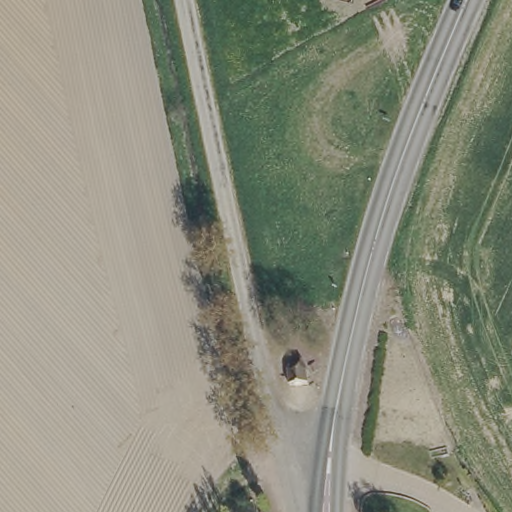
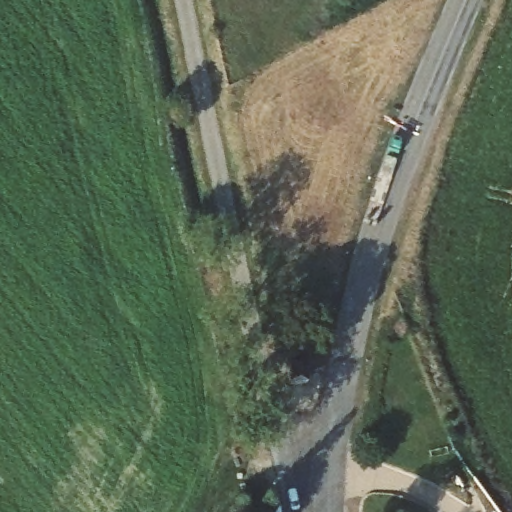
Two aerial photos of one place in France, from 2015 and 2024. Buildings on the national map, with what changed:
unchanged [(306,370),(306,383),(290,385),(289,371),(293,359),(301,358),(306,370)]

